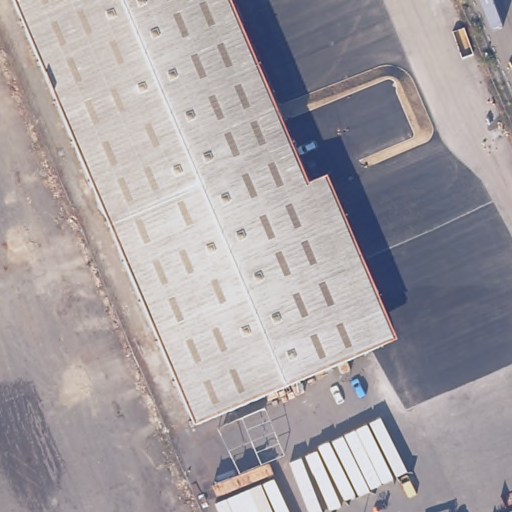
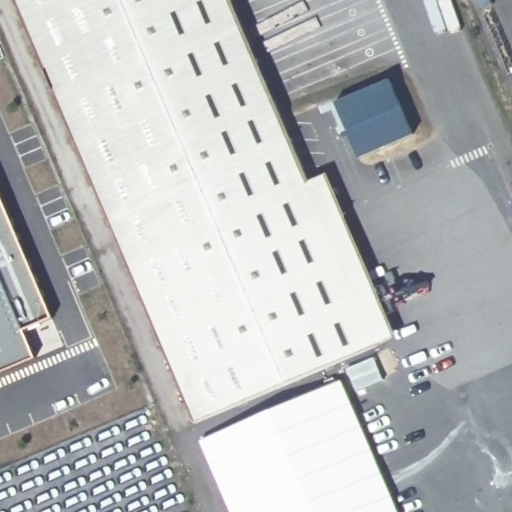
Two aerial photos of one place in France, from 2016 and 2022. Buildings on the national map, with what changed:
unchanged [(378,340),(195,419),(17,0),(234,0),(378,340)]
new [(392,77),(417,133),(359,157),(336,101),(392,77)]
new [(26,328),(37,357),(0,372),(0,189),(54,317),(26,328)]
new [(400,512),(230,512),(200,441),(342,377),(400,512)]

